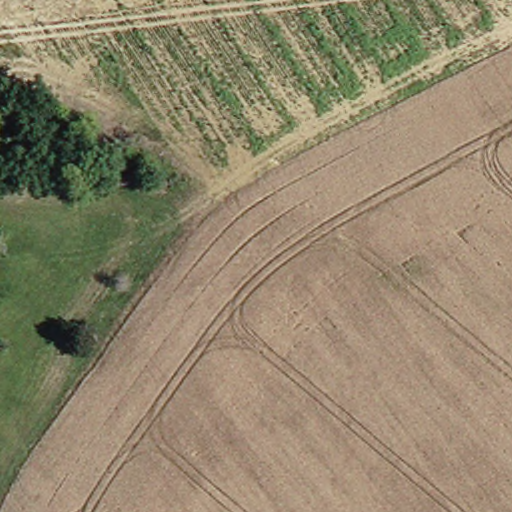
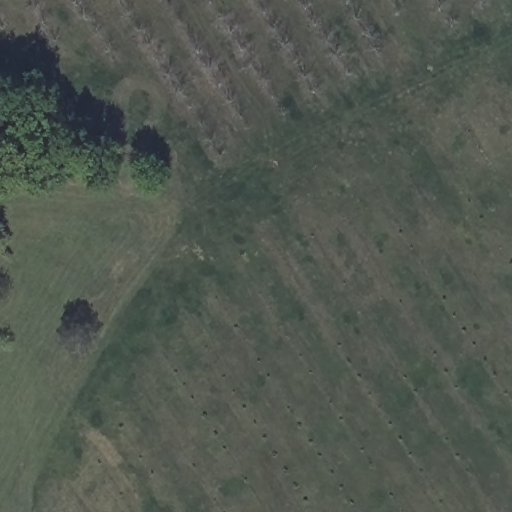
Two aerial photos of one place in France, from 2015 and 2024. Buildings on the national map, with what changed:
[]

